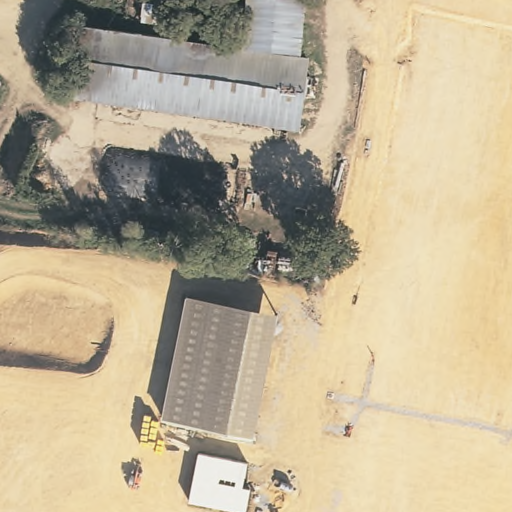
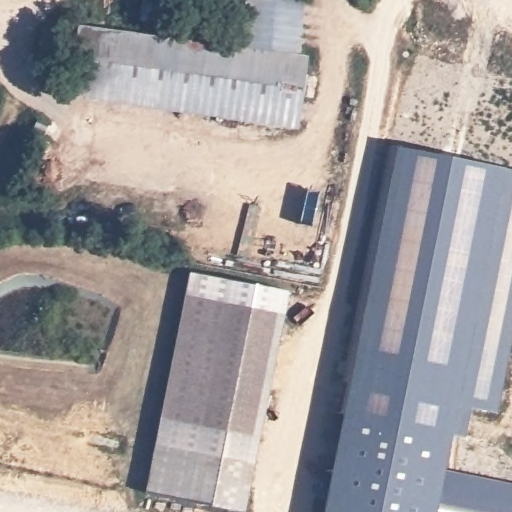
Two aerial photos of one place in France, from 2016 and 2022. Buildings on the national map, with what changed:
unchanged [(308,55),(293,50),(291,59),(244,50),(249,0),(310,0),(308,55)]
unchanged [(234,53),(309,64),(302,132),(224,120),(71,97),(81,31),(234,53)]
new [(506,167),(512,168),(512,337),(498,412),(457,402),(446,467),(512,481),(512,512),(327,512),(396,147),(506,167)]
unchanged [(248,512),(240,512),(148,494),(188,296),(287,316),(248,512)]

